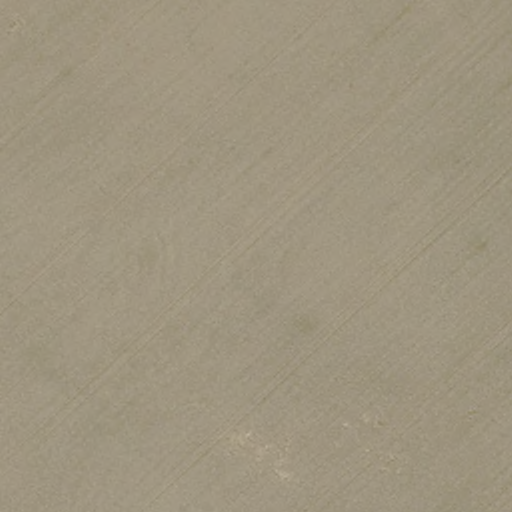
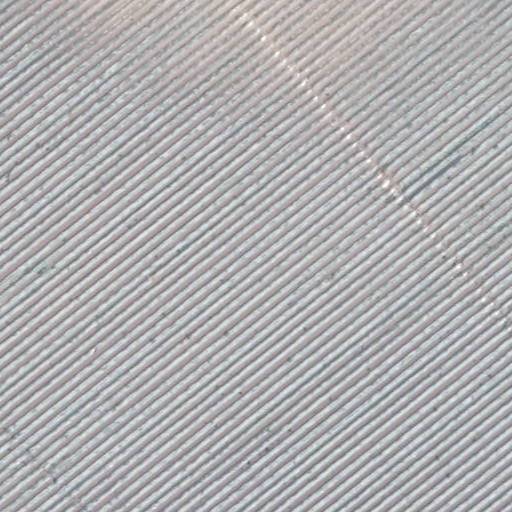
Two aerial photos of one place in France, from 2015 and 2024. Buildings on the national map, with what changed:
[]

